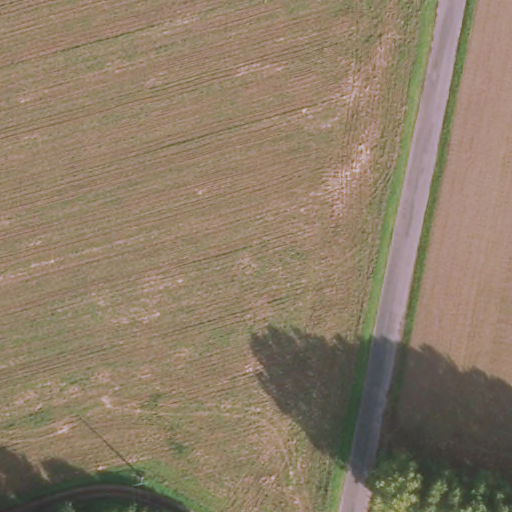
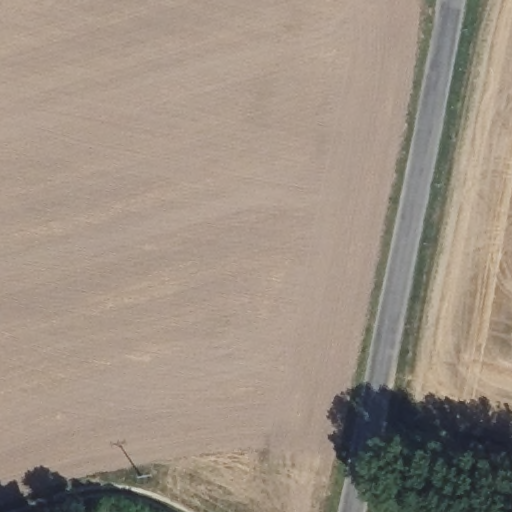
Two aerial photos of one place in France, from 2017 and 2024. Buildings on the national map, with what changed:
[]

